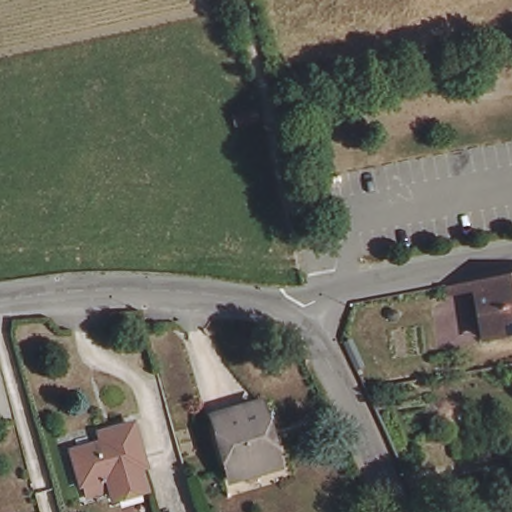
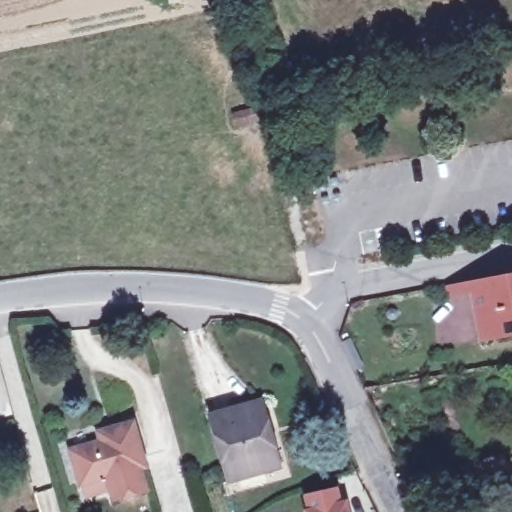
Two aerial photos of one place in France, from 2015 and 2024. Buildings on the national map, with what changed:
unchanged [(475,333),(467,284),(512,277),(512,330),(475,336),(475,333)]
unchanged [(215,413),(262,401),(268,423),(264,424),(274,463),(231,473),(215,413)]
unchanged [(70,444),(99,437),(97,427),(133,418),(144,462),(139,462),(144,486),(111,493),(106,471),(100,472),(103,485),(92,487),(82,490),(79,477),(70,444)]
new [(311,511),(308,496),(336,490),(339,504),(345,502),(347,512),(307,512),(307,511),(311,511)]

